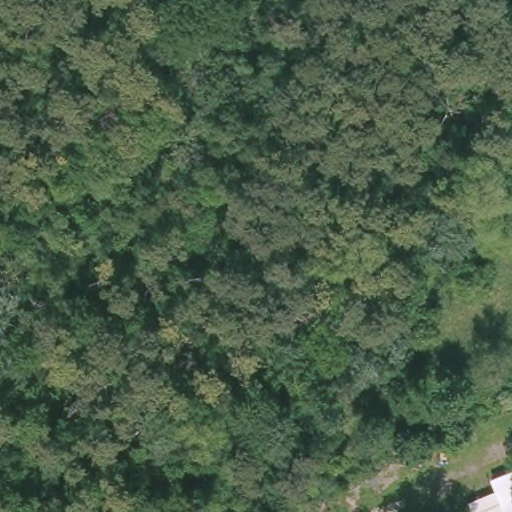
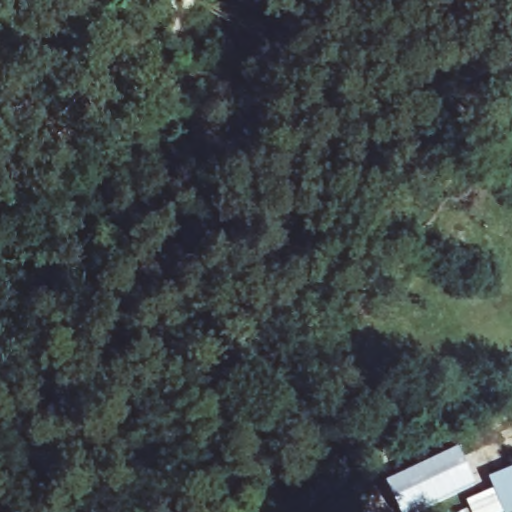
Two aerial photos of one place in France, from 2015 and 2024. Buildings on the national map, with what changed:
new [(475,483),(414,512),(399,512),(385,482),(460,448),(475,483)]
unchanged [(488,481),(512,471),(512,512),(470,512),(467,503),(493,493),(488,481)]

